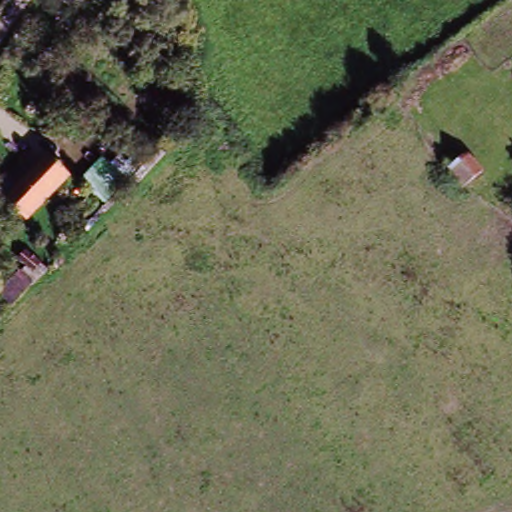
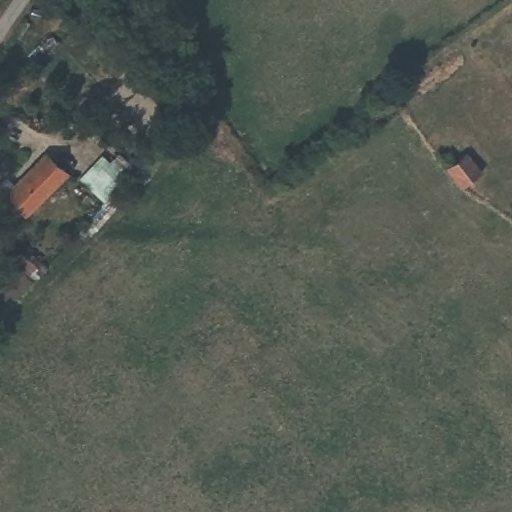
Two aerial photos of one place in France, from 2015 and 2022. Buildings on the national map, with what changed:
unchanged [(453,148),(477,179),(461,195),(437,162),(453,148)]
unchanged [(5,183),(15,191),(55,149),(73,165),(22,220),(5,203),(0,199),(0,189),(5,183)]

